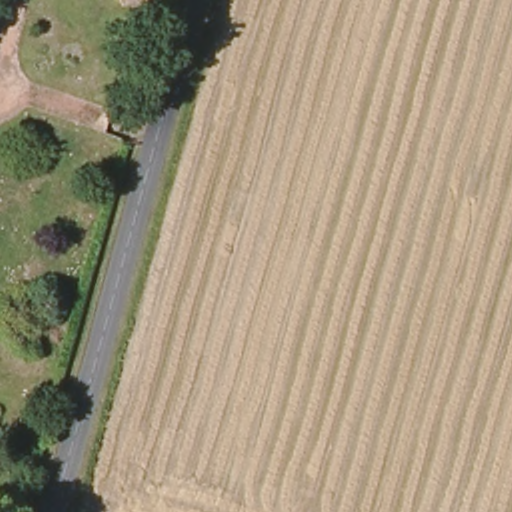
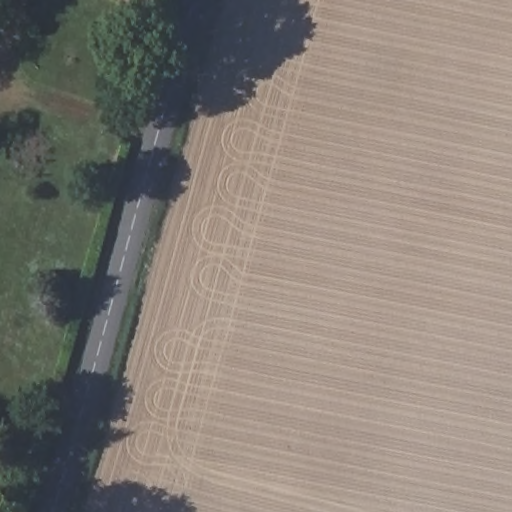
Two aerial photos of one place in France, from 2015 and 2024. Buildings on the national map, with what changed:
unchanged [(136,13),(132,6),(129,0),(164,0),(149,7),(136,13)]

